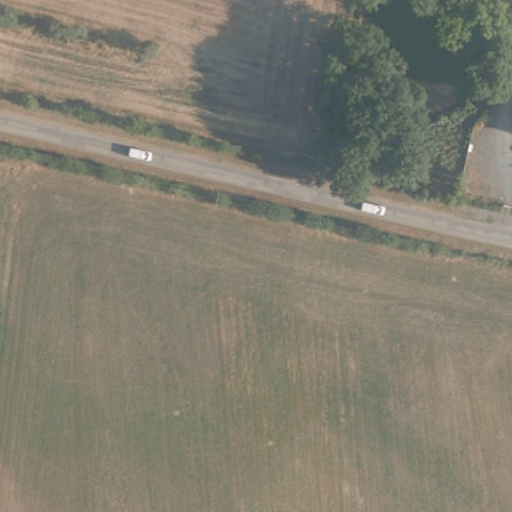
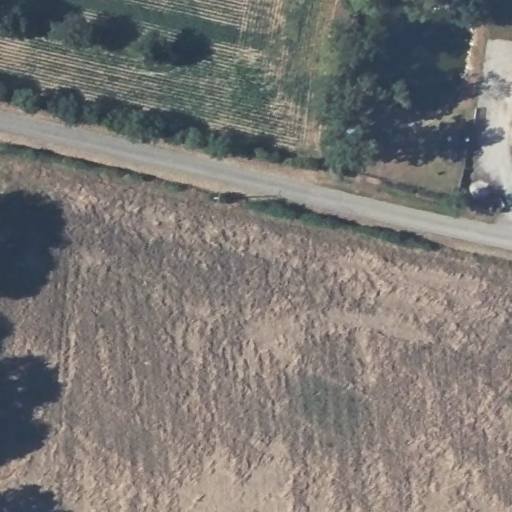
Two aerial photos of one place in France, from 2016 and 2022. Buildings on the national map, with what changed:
[]

